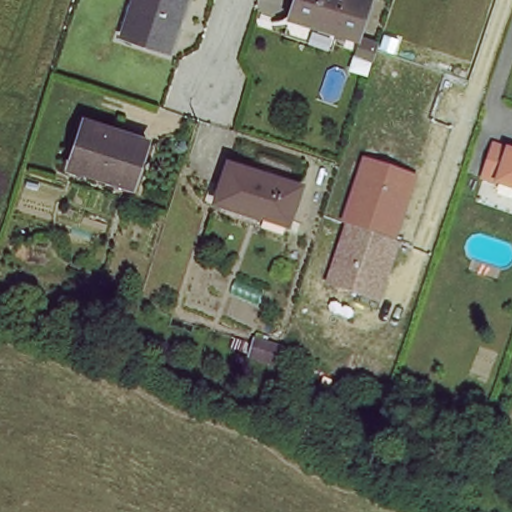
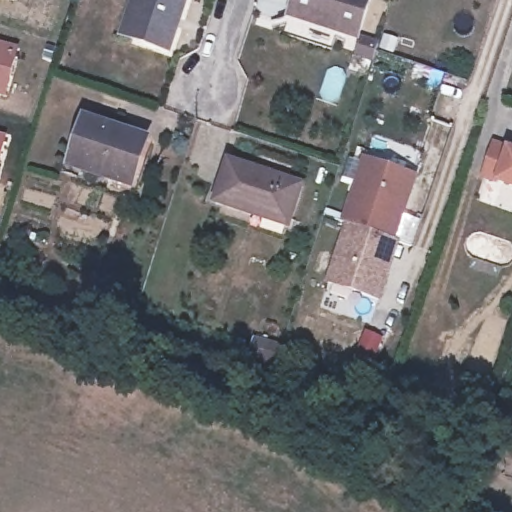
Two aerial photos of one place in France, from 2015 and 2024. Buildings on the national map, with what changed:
new [(12,0),(14,0),(14,1),(12,0)]
unchanged [(140,0),(190,0),(175,45),(138,33),(130,30),(137,9),(140,0)]
unchanged [(291,17),(297,0),(373,0),(358,43),(318,30),(318,26),(291,17)]
new [(5,97),(0,96),(0,41),(20,46),(5,97)]
unchanged [(68,169),(84,122),(147,143),(130,189),(68,169)]
new [(7,134),(0,160),(0,132),(7,134)]
unchanged [(494,143),(512,149),(512,183),(483,173),(494,143)]
unchanged [(394,239),(347,222),(341,220),(362,156),(416,175),(394,239)]
unchanged [(216,204),(229,165),(301,187),(288,227),(216,204)]
unchanged [(347,222),(398,240),(377,300),(326,282),(347,222)]

